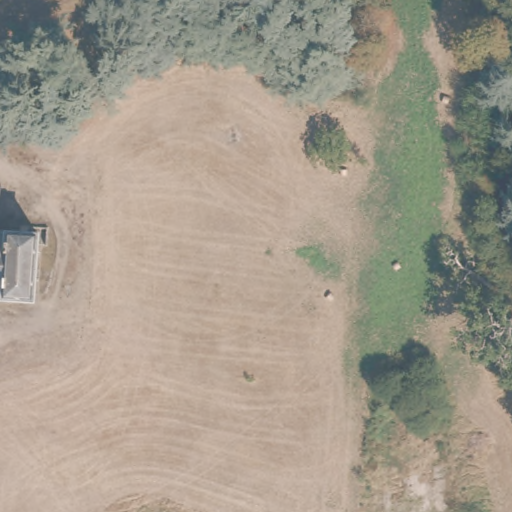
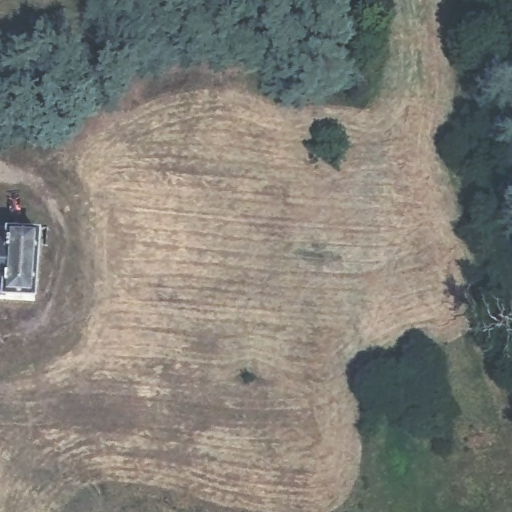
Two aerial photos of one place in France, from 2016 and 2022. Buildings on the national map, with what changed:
unchanged [(42,303),(0,300),(0,232),(48,235),(42,303)]

